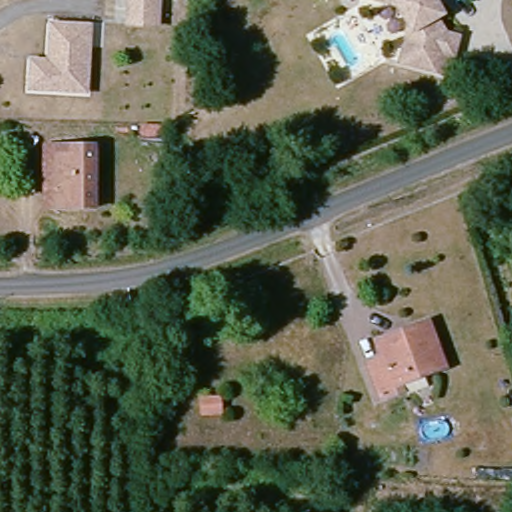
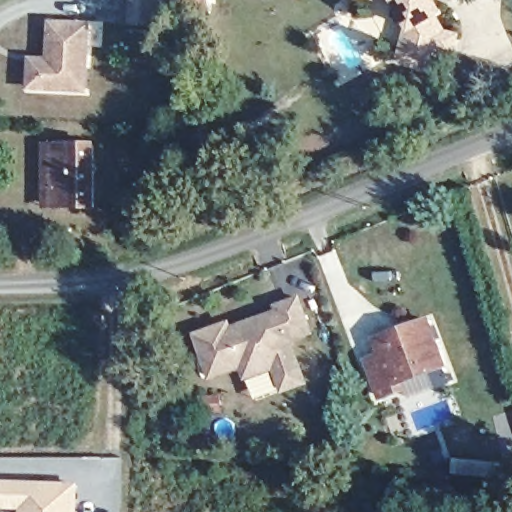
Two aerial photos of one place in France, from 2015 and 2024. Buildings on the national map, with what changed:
unchanged [(151,24),(123,22),(125,0),(153,0),(151,24)]
new [(179,5),(179,0),(214,0),(213,5),(179,5)]
unchanged [(441,73),(400,68),(403,48),(408,44),(411,30),(398,7),(365,2),(365,0),(435,0),(441,10),(433,15),(448,38),(451,36),(455,36),(453,53),(449,74),(441,73)]
unchanged [(82,44),(80,89),(25,85),(27,58),(44,59),(45,44),(46,32),(47,22),(54,23),(83,25),(82,44)]
unchanged [(90,149),(88,208),(51,206),(51,148),(90,149)]
new [(238,361),(206,373),(192,333),(224,322),(226,327),(274,310),(272,304),(294,297),(307,332),(286,339),(302,382),(279,390),(270,363),(264,365),(242,373),(238,361)]
unchanged [(444,369),(392,383),(395,394),(375,399),(367,363),(384,358),(381,346),(378,336),(413,326),(430,320),(444,369)]
unchanged [(203,389),(202,403),(176,402),(177,388),(203,389)]
new [(79,512),(19,512),(19,510),(0,510),(0,480),(79,483),(79,512)]

